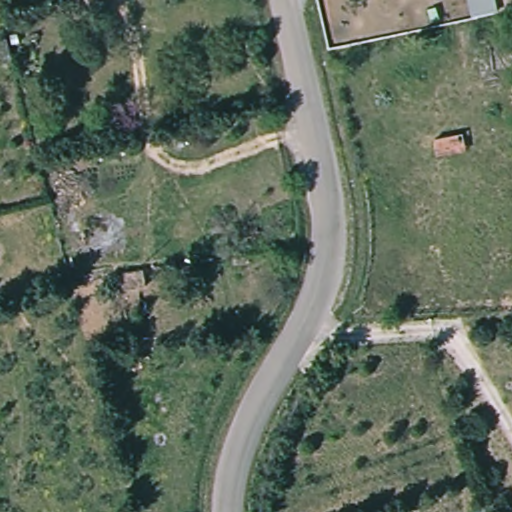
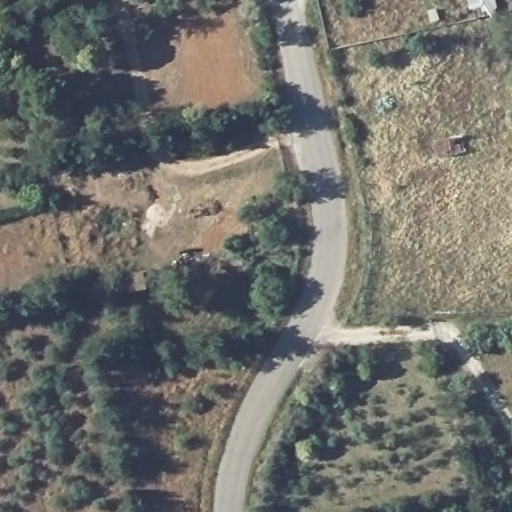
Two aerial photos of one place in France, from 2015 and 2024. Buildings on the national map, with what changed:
unchanged [(503,1),(473,8),(472,0),(503,0),(503,1)]
unchanged [(0,53),(0,38),(8,36),(12,50),(0,53)]

